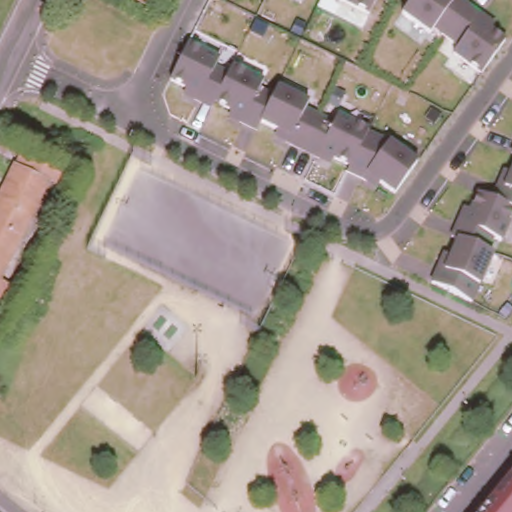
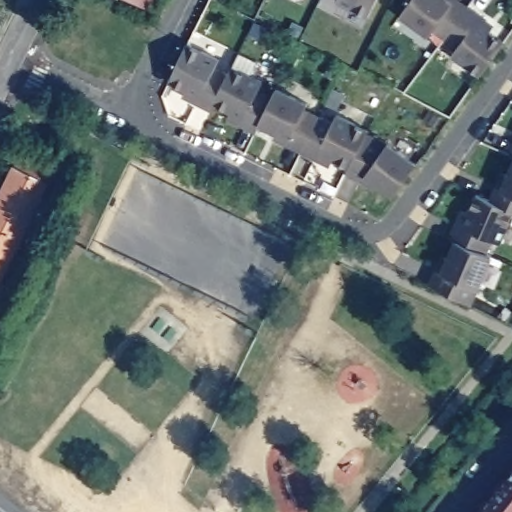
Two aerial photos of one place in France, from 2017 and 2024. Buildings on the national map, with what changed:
unchanged [(159,10),(140,0),(164,0),(159,10)]
unchanged [(368,18),(336,1),(337,0),(377,0),(368,18)]
unchanged [(453,0),(461,0),(497,26),(492,32),(507,41),(480,80),(449,58),(455,50),(432,33),(430,36),(401,14),(412,0),(453,0)]
unchanged [(379,187),(375,194),(344,178),(347,168),(333,162),(330,168),(273,141),(277,132),(261,125),(257,133),(228,120),(232,113),(215,108),(212,113),(180,101),(185,91),(168,85),(187,44),(221,59),(216,69),(227,72),(230,65),(265,78),(260,88),(272,93),(277,85),(312,102),(308,109),(332,122),(337,115),(370,131),(371,134),(391,142),(421,163),(394,199),(379,187)]
unchanged [(508,155),(512,146),(512,157),(508,155)]
unchanged [(67,172),(62,183),(50,177),(25,228),(0,216),(0,197),(24,150),(67,172)]
unchanged [(440,254),(449,256),(457,239),(447,237),(460,207),(467,207),(475,191),(488,194),(501,169),(510,172),(512,165),(512,215),(473,306),(426,286),(440,254)]
unchanged [(0,216),(25,228),(0,278),(0,216)]
unchanged [(2,304),(0,303),(0,278),(12,284),(2,304)]
unchanged [(487,512),(512,484),(512,512),(487,512)]

